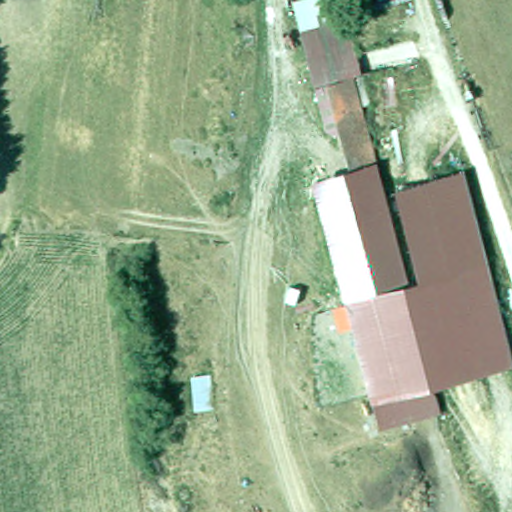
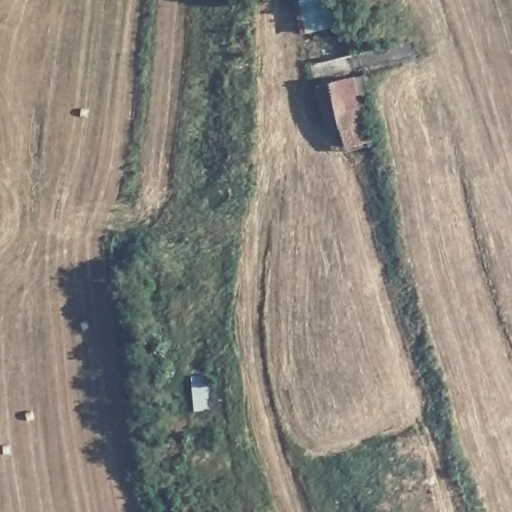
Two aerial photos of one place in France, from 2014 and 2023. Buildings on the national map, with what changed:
unchanged [(342,138),(333,133),(303,5),(325,0),(347,0),(365,77),(372,106),(360,109),(370,146),(351,151),(347,136),(342,138)]
demolished [(459,171),(485,266),(420,281),(395,189),(459,171)]
demolished [(361,195),(380,191),(405,286),(347,296),(326,203),(361,195)]
demolished [(350,307),(347,296),(405,286),(420,281),(485,266),(512,364),(512,366),(430,387),(436,411),(378,427),(355,328),(341,331),(336,310),(350,307)]

